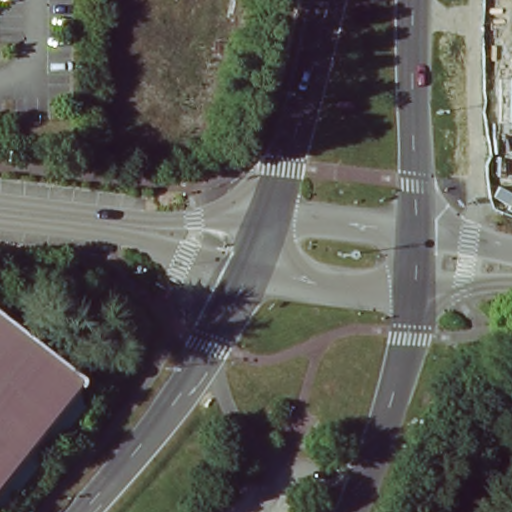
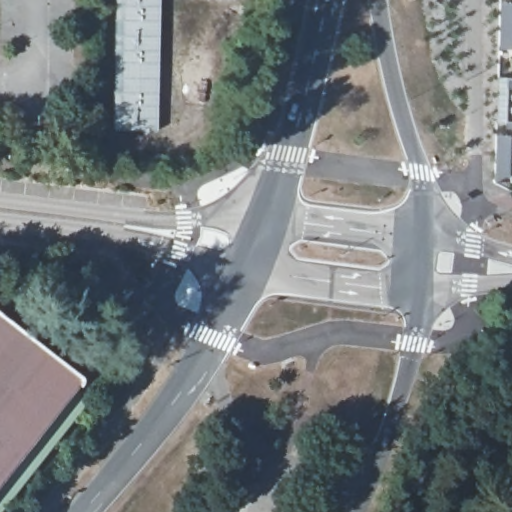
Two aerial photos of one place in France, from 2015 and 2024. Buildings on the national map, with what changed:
new [(114,131),(117,0),(161,0),(158,133),(114,131)]
new [(502,7),(512,8),(510,49),(501,48),(502,7)]
unchanged [(498,122),(489,122),(489,78),(495,78),(496,69),(512,69),(512,135),(499,134),(498,122)]
new [(499,139),(507,139),(506,181),(497,180),(499,139)]
unchanged [(71,374),(72,377),(72,379),(71,381),(0,473),(0,318),(71,374)]

